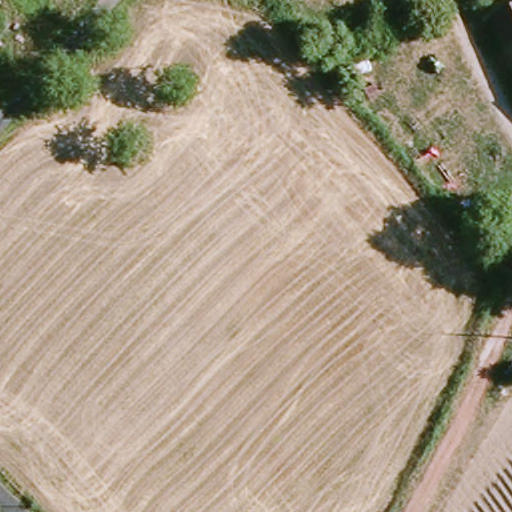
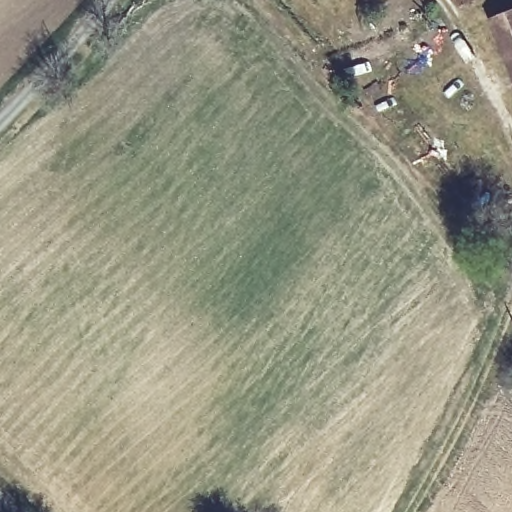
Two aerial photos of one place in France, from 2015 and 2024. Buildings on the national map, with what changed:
unchanged [(495,16),(512,8),(512,57),(495,16)]

